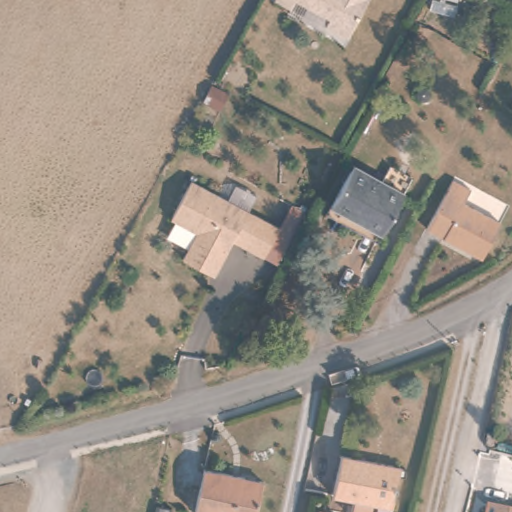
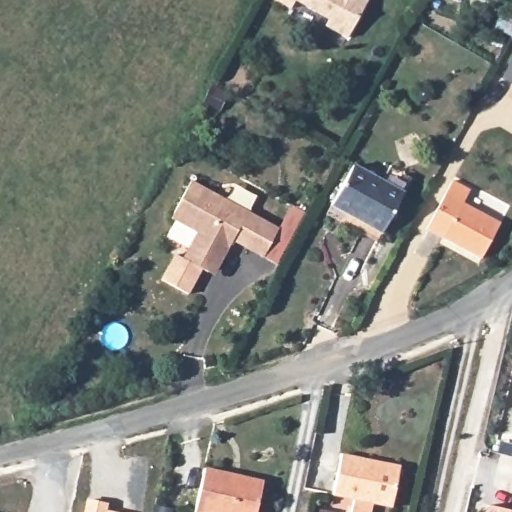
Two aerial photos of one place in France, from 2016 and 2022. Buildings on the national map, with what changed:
unchanged [(289,7),(277,0),(293,0),(289,7)]
unchanged [(346,36),(324,24),(328,17),(296,0),(366,0),(346,36)]
new [(500,76),(512,56),(512,83),(500,76)]
unchanged [(335,206),(341,194),(361,157),(410,183),(391,221),(384,233),(335,206)]
unchanged [(455,181),(474,191),(468,202),(475,206),(456,240),(430,226),(455,181)]
unchanged [(263,260),(258,257),(233,242),(216,272),(207,274),(182,260),(197,234),(171,219),(192,182),(273,229),(279,232),(263,260)]
unchanged [(504,221),(486,256),(456,240),(475,206),(504,221)]
new [(188,294),(160,279),(172,255),(182,260),(200,270),(188,294)]
unchanged [(401,465),(391,508),(333,493),(342,452),(401,465)]
unchanged [(259,512),(198,512),(208,471),(265,483),(259,512)]
new [(105,511),(110,512),(82,512),(85,499),(106,503),(105,511)]
unchanged [(489,512),(489,511),(494,512),(489,512)]

